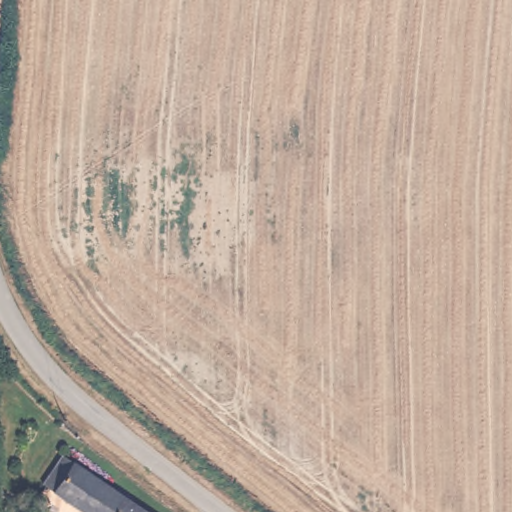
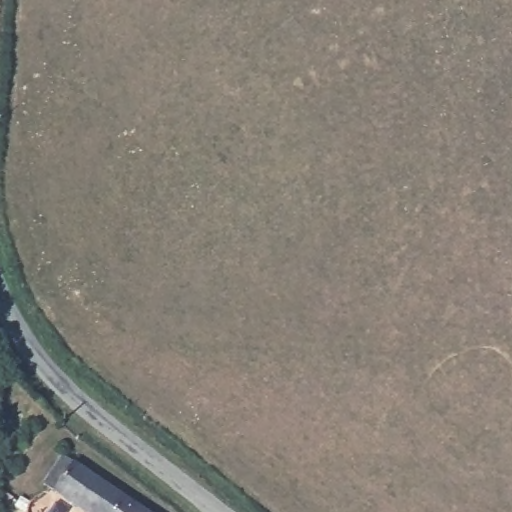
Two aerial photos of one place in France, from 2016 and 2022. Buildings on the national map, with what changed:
unchanged [(150,512),(90,512),(44,480),(62,451),(150,512)]

